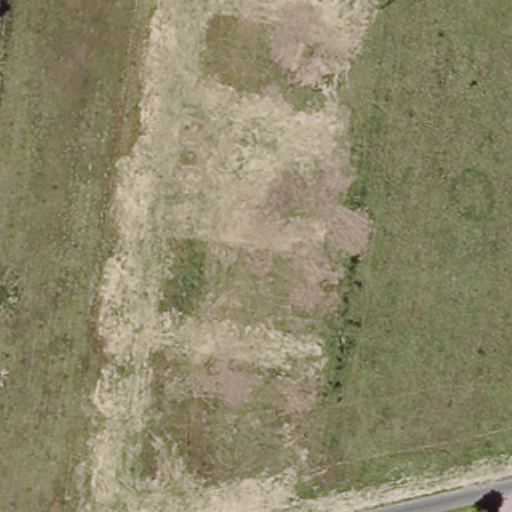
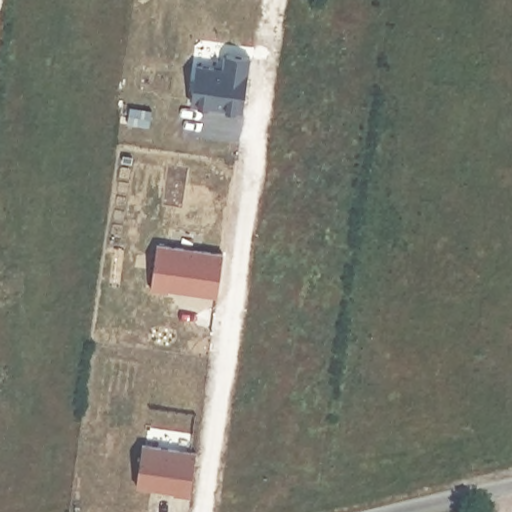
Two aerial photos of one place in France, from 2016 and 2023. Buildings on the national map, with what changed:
new [(199,65),(226,68),(228,53),(252,57),(245,109),(193,102),(199,65)]
new [(158,244),(225,254),(219,296),(169,288),(169,291),(152,288),(158,244)]
new [(137,490),(143,446),(197,453),(192,497),(137,490)]

